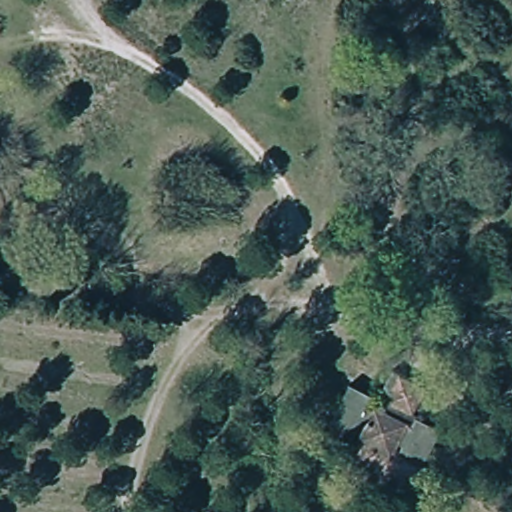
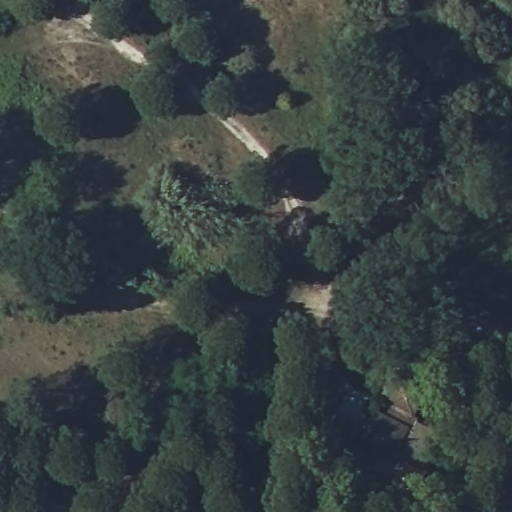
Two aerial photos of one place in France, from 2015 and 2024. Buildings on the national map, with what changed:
unchanged [(419,465),(396,452),(390,459),(356,442),(359,435),(332,422),(344,389),(439,429),(419,465)]

